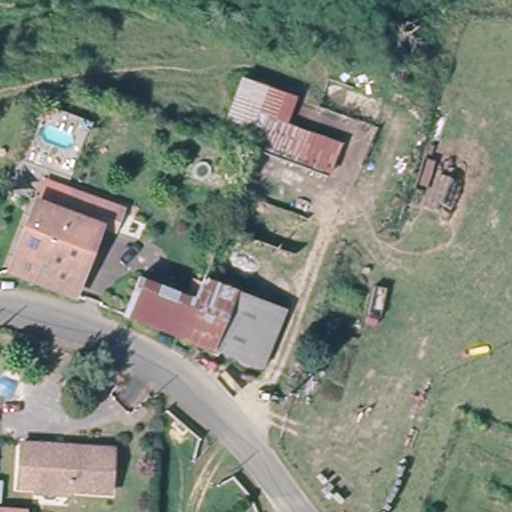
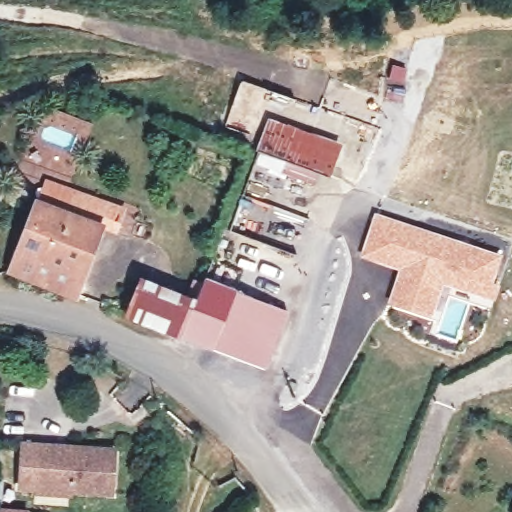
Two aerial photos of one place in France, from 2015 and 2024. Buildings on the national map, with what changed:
unchanged [(265,144),(240,119),(252,76),(274,84),(266,111),(343,136),(334,168),(265,144)]
unchanged [(188,124),(182,145),(133,128),(140,107),(188,124)]
unchanged [(29,195),(33,196),(40,177),(113,201),(125,204),(120,222),(108,218),(83,292),(7,263),(29,195)]
new [(501,256),(490,297),(443,282),(431,316),(390,303),(403,269),(362,255),(375,215),(501,256)]
unchanged [(179,336),(194,296),(201,275),(285,307),(265,368),(179,336)]
unchanged [(128,319),(141,278),(194,296),(179,336),(128,319)]
unchanged [(110,490),(23,481),(29,438),(115,445),(110,490)]
unchanged [(18,512),(0,512),(0,510),(18,512)]

